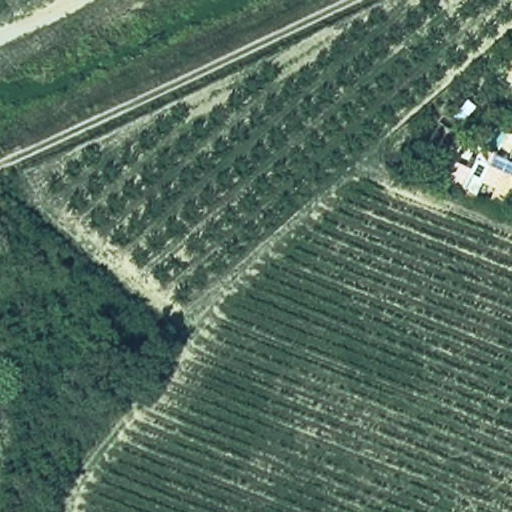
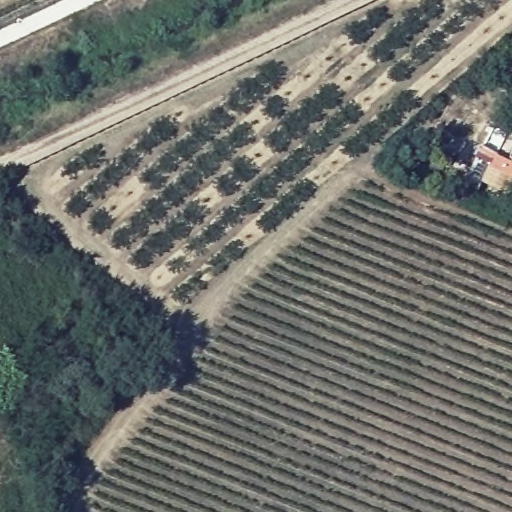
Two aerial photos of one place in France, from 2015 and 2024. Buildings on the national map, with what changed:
unchanged [(455,185),(468,159),(489,168),(475,195),(455,185)]

